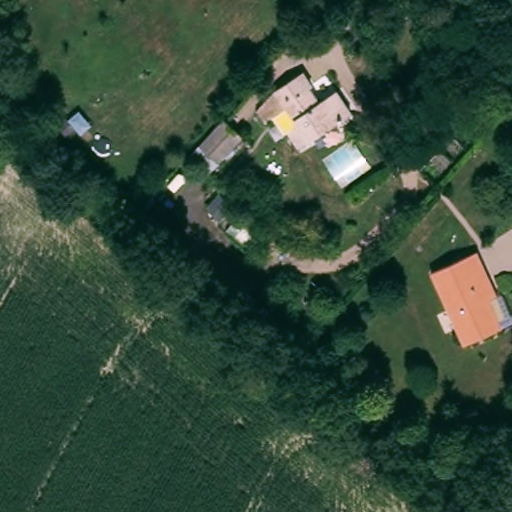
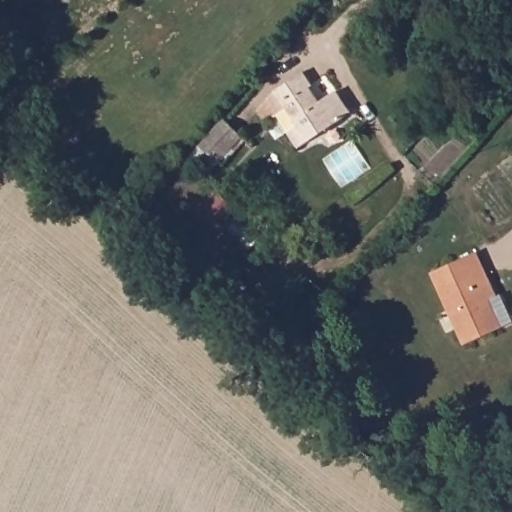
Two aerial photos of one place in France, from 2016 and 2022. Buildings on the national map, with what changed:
unchanged [(273,98),(264,83),(270,78),(275,76),(283,72),(298,68),(316,101),(335,87),(348,108),(324,124),(291,145),(280,130),(288,125),(280,112),(264,122),(256,110),(273,98)]
unchanged [(499,323),(460,340),(429,269),(475,249),(494,292),(506,320),(499,323)]

